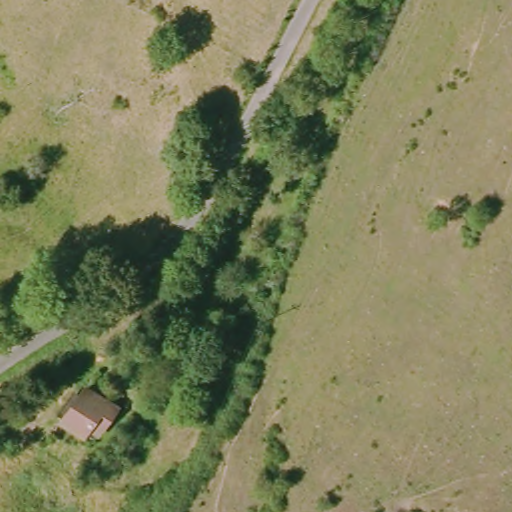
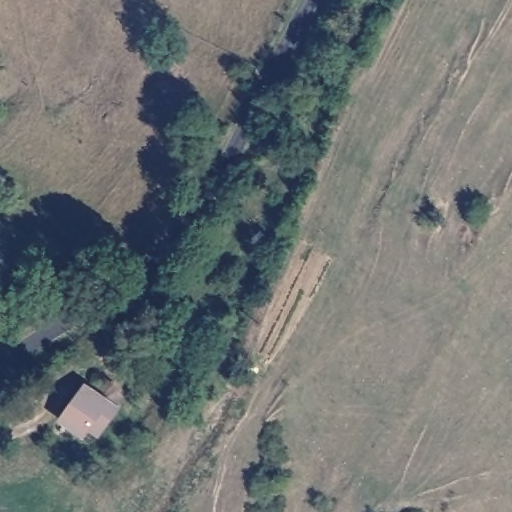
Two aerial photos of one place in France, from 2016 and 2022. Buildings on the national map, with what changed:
unchanged [(60,415),(82,382),(110,401),(89,434),(60,415)]

